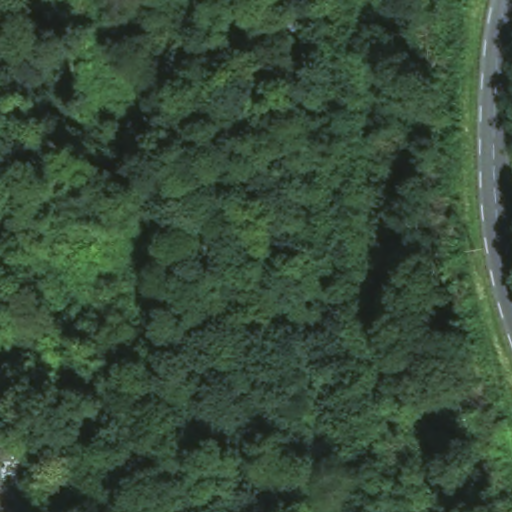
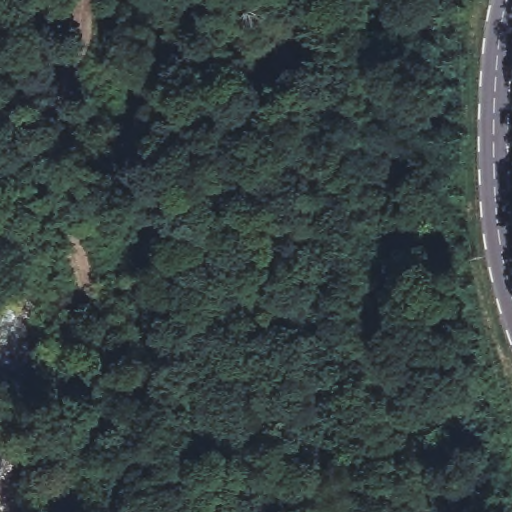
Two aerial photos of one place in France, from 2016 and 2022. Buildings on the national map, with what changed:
[]

